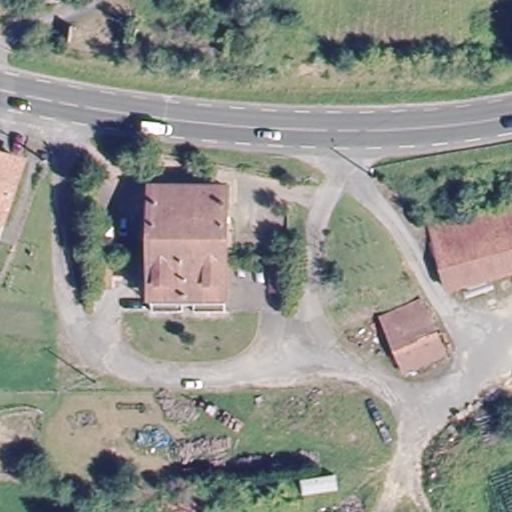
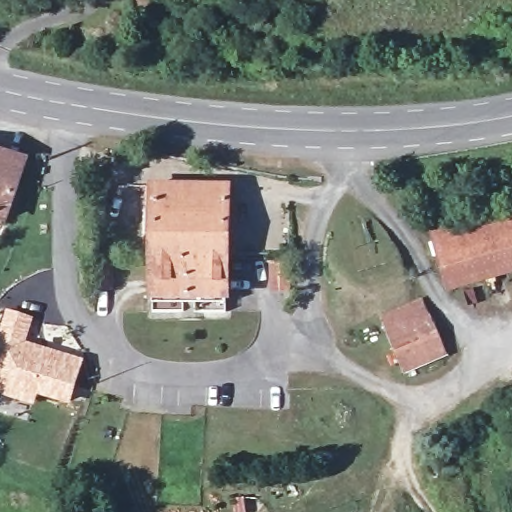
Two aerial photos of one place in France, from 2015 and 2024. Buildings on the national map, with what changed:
unchanged [(37,5),(36,0),(73,0),(37,5)]
unchanged [(0,155),(23,162),(5,221),(0,219),(0,155)]
unchanged [(229,167),(220,324),(146,321),(154,164),(229,167)]
unchanged [(512,196),(512,258),(504,198),(512,196)]
unchanged [(443,278),(426,215),(504,198),(512,258),(512,262),(443,278)]
unchanged [(101,304),(83,303),(85,270),(103,271),(101,304)]
unchanged [(285,318),(270,318),(271,286),(286,286),(285,318)]
new [(34,316),(26,340),(84,358),(69,405),(37,395),(33,406),(0,394),(0,328),(6,308),(34,316)]
unchanged [(450,359),(404,377),(384,329),(428,314),(450,359)]

